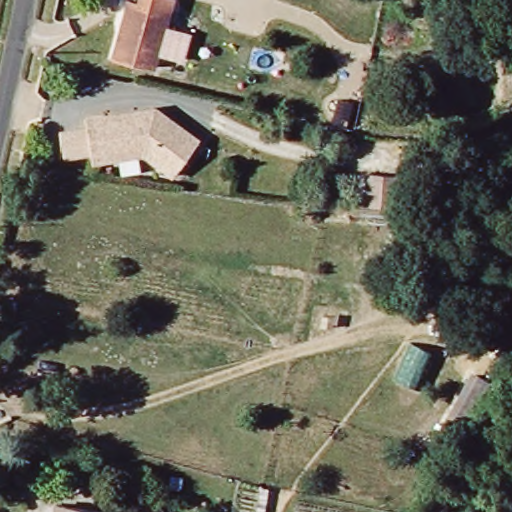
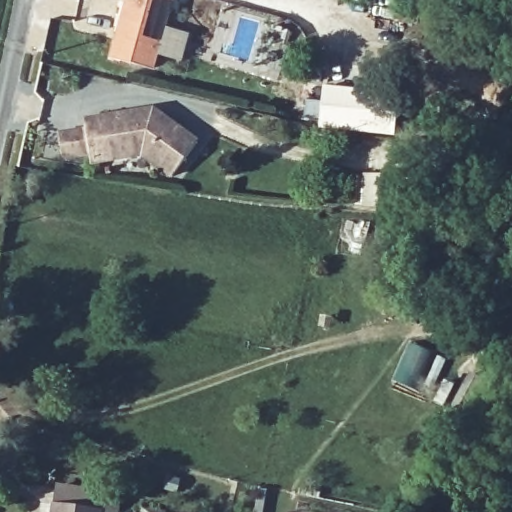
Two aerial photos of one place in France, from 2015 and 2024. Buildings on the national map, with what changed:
unchanged [(105,61),(118,13),(127,15),(131,1),(132,0),(155,0),(167,4),(166,11),(149,73),(105,61)]
new [(358,89),(356,111),(390,115),(389,128),(396,128),(395,137),(320,129),(324,86),(358,89)]
unchanged [(175,174),(146,153),(95,164),(87,121),(102,118),(140,110),(154,107),(200,139),(175,174)]
new [(372,207),(355,205),(357,176),(374,177),(372,207)]
unchanged [(78,512),(43,512),(44,508),(78,512)]

